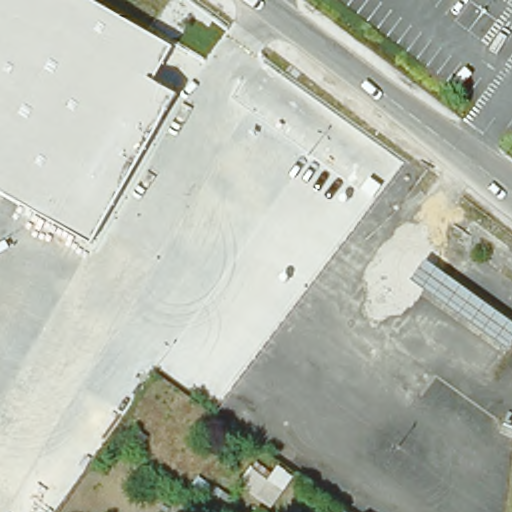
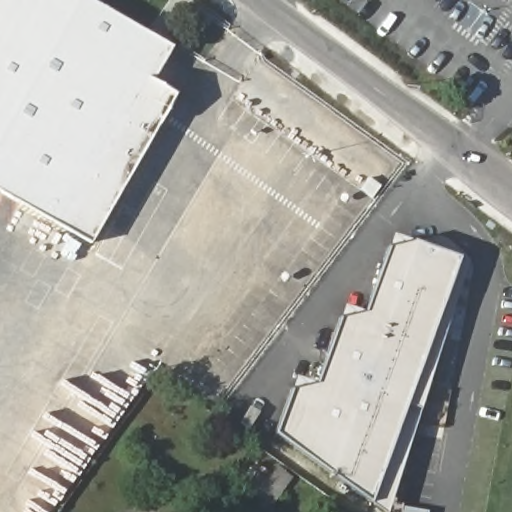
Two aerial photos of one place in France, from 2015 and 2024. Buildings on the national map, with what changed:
unchanged [(171,46),(151,81),(95,177),(119,191),(87,245),(0,194),(0,0),(90,0),(171,46)]
unchanged [(175,95),(119,191),(95,177),(151,81),(175,95)]
new [(387,512),(383,512),(275,433),(291,390),(317,383),(338,319),(366,312),(390,246),(416,239),(467,259),(387,512)]
demolished [(512,325),(512,354),(505,364),(403,288),(425,260),(512,325)]
new [(255,470),(270,480),(280,466),(295,477),(273,508),(244,486),(255,470)]

